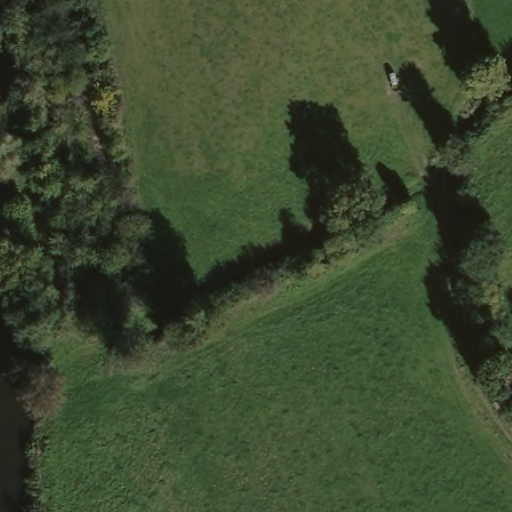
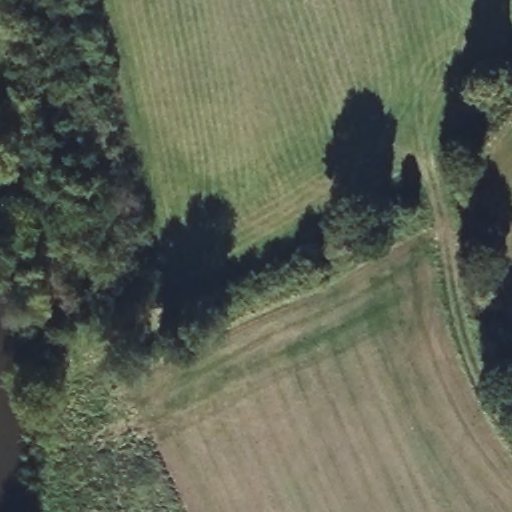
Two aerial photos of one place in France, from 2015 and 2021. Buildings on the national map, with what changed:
[]

